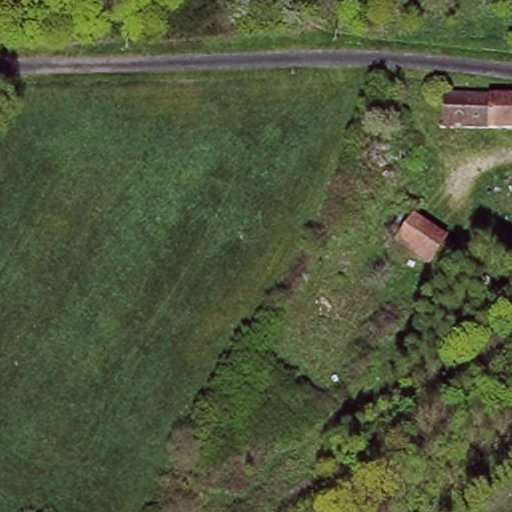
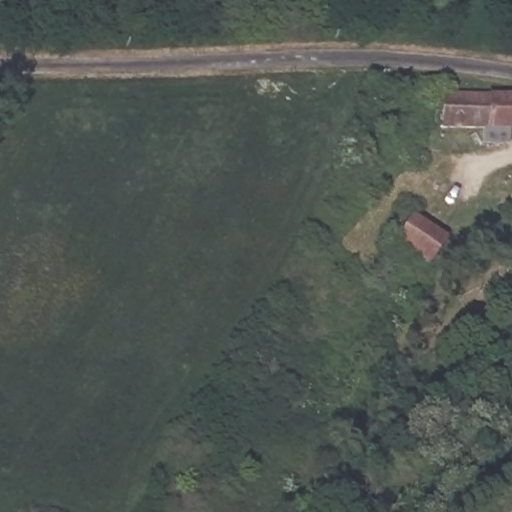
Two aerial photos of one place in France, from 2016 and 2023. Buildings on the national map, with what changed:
unchanged [(440,92),(512,95),(512,129),(439,129),(440,92)]
unchanged [(447,242),(430,267),(397,243),(415,218),(447,242)]

